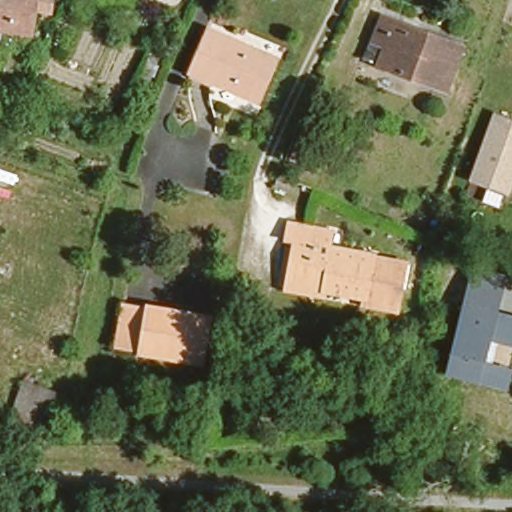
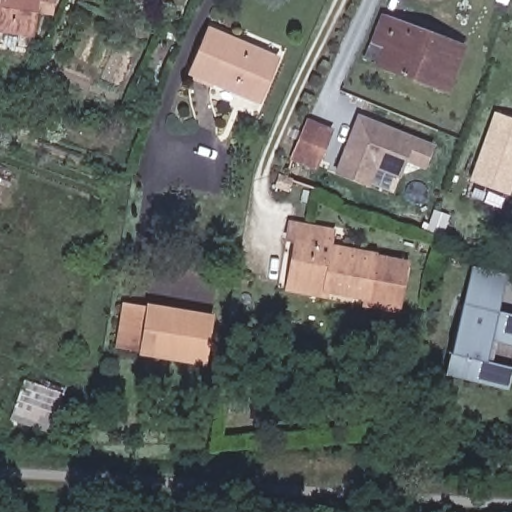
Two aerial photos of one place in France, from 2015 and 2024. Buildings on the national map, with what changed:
unchanged [(45,12),(30,10),(26,35),(0,31),(0,0),(47,0),(45,12)]
unchanged [(442,92),(366,63),(382,20),(458,48),(442,92)]
unchanged [(206,31),(269,58),(251,101),(189,72),(206,31)]
unchanged [(505,193),(500,206),(481,201),(486,185),(474,180),(496,111),(512,118),(512,191),(511,194),(505,193)]
new [(406,162),(400,179),(376,169),(369,188),(334,173),(357,113),(435,145),(425,170),(406,162)]
unchanged [(306,125),(332,136),(316,173),(291,162),(306,125)]
unchanged [(286,197),(276,192),(279,184),(290,189),(286,197)]
unchanged [(282,290),(285,277),(290,242),(281,241),(283,224),(327,230),(325,246),(402,257),(395,306),(360,301),(361,295),(320,289),(318,297),(282,290)]
unchanged [(485,361),(512,368),(512,373),(508,389),(445,374),(451,351),(471,267),(507,275),(498,310),(512,314),(512,344),(491,339),(485,361)]
unchanged [(111,347),(119,303),(150,309),(142,353),(111,347)]
unchanged [(142,353),(150,309),(211,319),(202,364),(142,353)]
unchanged [(60,394),(48,420),(10,410),(20,379),(60,394)]

